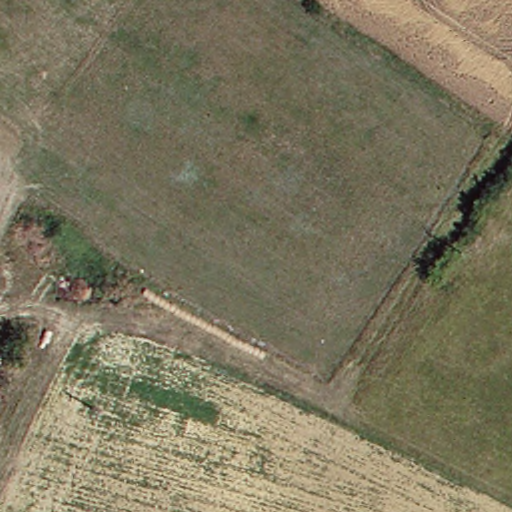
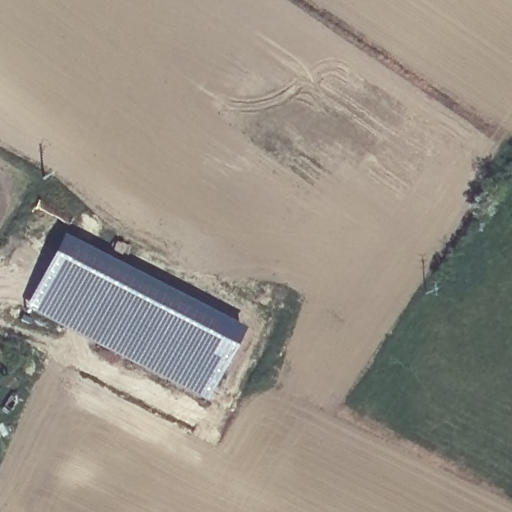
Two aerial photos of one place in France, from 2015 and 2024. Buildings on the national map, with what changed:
new [(60,235),(240,332),(201,406),(20,310),(60,235)]

